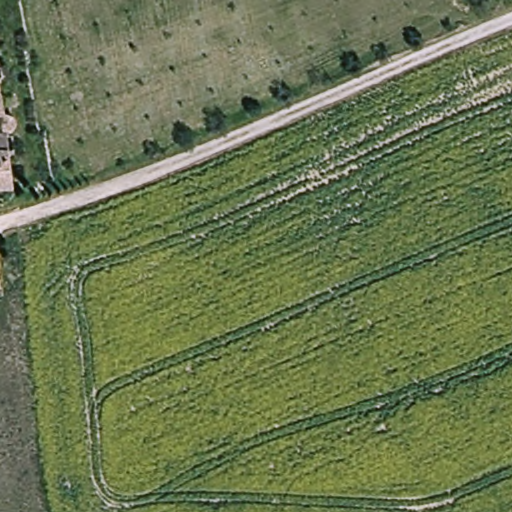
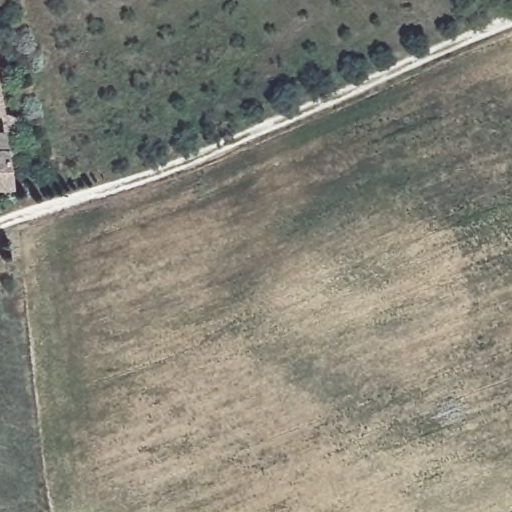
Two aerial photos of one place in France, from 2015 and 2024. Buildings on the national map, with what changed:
unchanged [(0,107),(0,75),(5,107),(0,107)]
unchanged [(20,114),(20,120),(17,124),(13,126),(8,128),(5,107),(13,108),(17,110),(20,114)]
unchanged [(16,183),(0,183),(0,128),(8,128),(16,183)]

